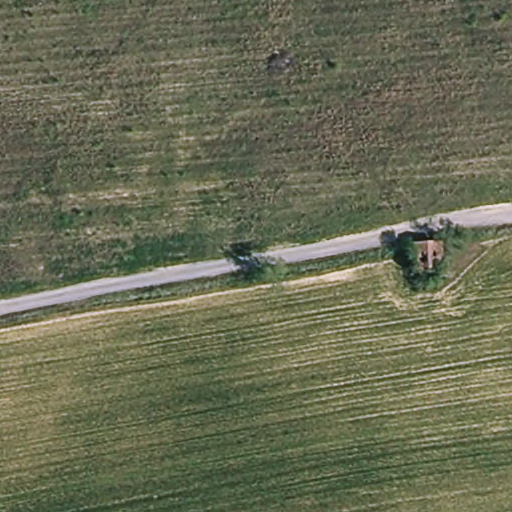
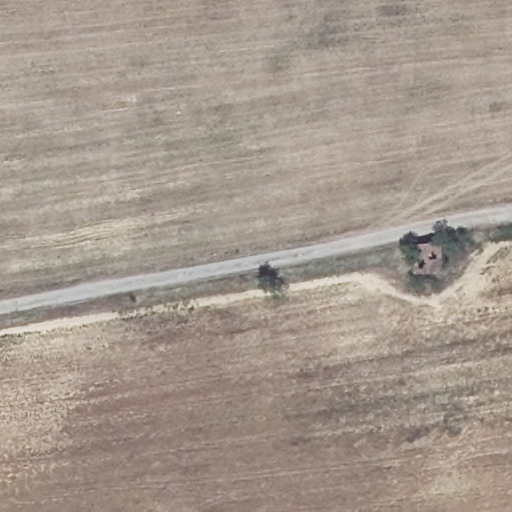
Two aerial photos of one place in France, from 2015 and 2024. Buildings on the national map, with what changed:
unchanged [(445,242),(450,267),(426,273),(418,245),(445,242)]

